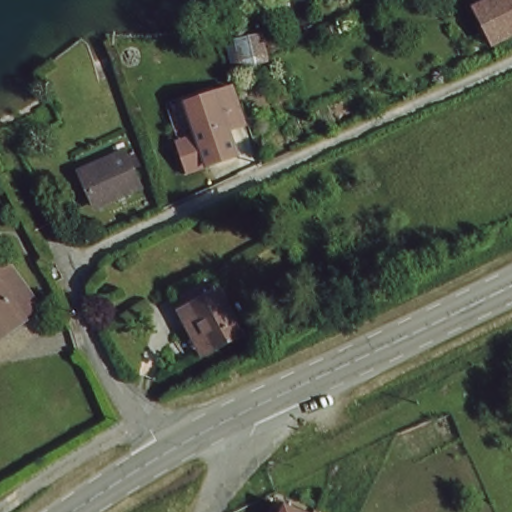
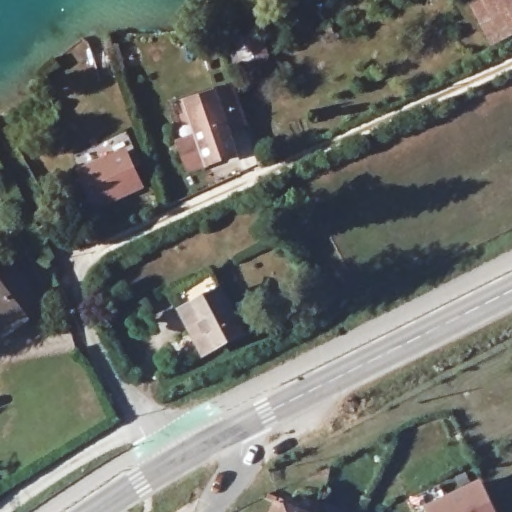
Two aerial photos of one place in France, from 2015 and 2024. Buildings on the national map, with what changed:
unchanged [(474,15),(470,4),(477,0),(512,0),(512,41),(491,52),(474,15)]
unchanged [(238,155),(208,168),(189,119),(220,105),(238,155)]
unchanged [(135,194),(92,210),(78,175),(121,158),(135,194)]
unchanged [(23,305),(9,315),(12,320),(0,328),(0,280),(3,278),(23,305)]
unchanged [(241,325),(219,336),(200,346),(199,347),(181,305),(221,286),(241,325)]
new [(489,512),(427,512),(425,507),(476,484),(489,512)]
unchanged [(282,512),(274,512),(275,509),(282,512)]

